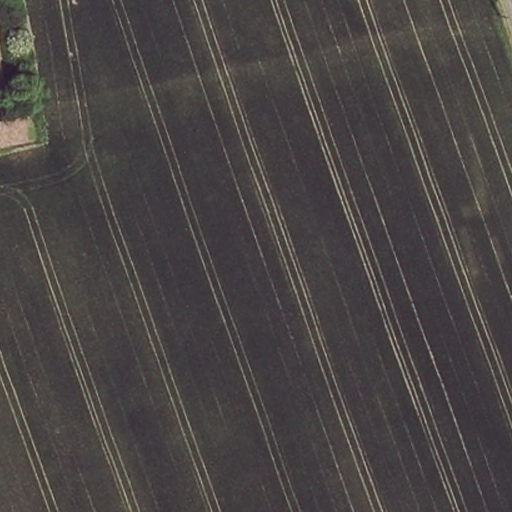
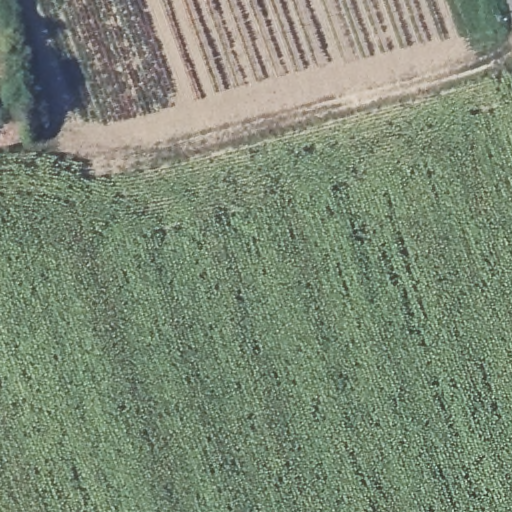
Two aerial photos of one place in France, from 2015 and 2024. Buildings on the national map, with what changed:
unchanged [(0,126),(26,121),(28,140),(0,146),(0,126)]

